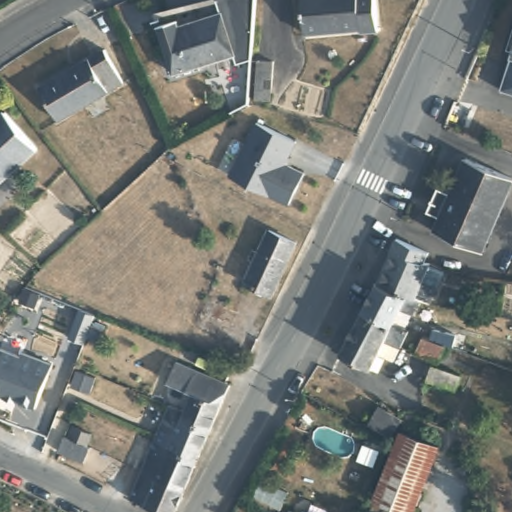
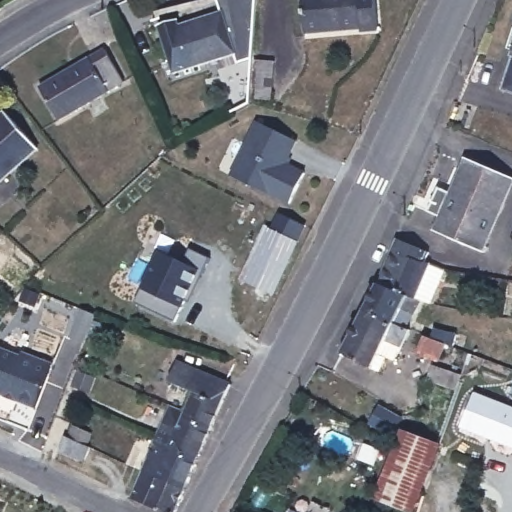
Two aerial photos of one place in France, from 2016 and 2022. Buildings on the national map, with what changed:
unchanged [(255,0),(252,59),(236,64),(233,54),(221,14),(217,0),(255,0)]
unchanged [(357,28),(356,25),(302,30),(299,0),(373,0),(374,27),(357,28)]
unchanged [(233,54),(173,74),(157,25),(175,20),(179,27),(221,14),(233,54)]
unchanged [(60,120),(40,89),(104,50),(122,81),(60,120)]
unchanged [(271,101),(255,100),(257,60),(273,61),(271,101)]
unchanged [(512,65),(512,94),(503,91),(512,65)]
unchanged [(36,150),(0,182),(0,117),(4,114),(36,150)]
unchanged [(288,161),(308,170),(294,200),(274,191),(273,192),(235,174),(259,120),(299,137),(288,161)]
unchanged [(435,190),(440,187),(447,191),(463,155),(512,176),(512,181),(481,249),(432,227),(438,213),(432,210),(427,207),(430,199),(435,190)]
unchanged [(273,297),(245,283),(270,232),(297,244),(273,297)]
unchanged [(400,236),(430,250),(427,258),(445,266),(430,298),(420,297),(408,295),(377,278),(396,244),(400,236)]
new [(164,246),(187,258),(195,245),(215,255),(207,271),(202,268),(177,317),(137,297),(164,246)]
unchanged [(377,278),(408,295),(420,297),(405,326),(364,305),(377,278)]
demolished [(206,315),(211,303),(239,315),(233,327),(210,317),(206,315)]
unchanged [(371,363),(341,347),(364,305),(405,326),(411,328),(403,343),(400,342),(395,355),(385,351),(378,367),(371,363)]
unchanged [(96,316),(85,343),(70,337),(81,310),(96,316)]
unchanged [(441,367),(416,357),(423,341),(448,350),(441,367)]
unchanged [(0,390),(0,348),(0,347),(21,356),(22,353),(23,352),(53,363),(53,364),(37,405),(18,397),(7,392),(0,390)]
unchanged [(162,420),(170,402),(186,408),(191,397),(165,385),(179,356),(231,380),(211,427),(200,455),(155,436),(162,420)]
unchanged [(457,397),(426,384),(433,367),(463,380),(457,397)]
unchanged [(395,437),(372,424),(381,410),(403,422),(395,437)]
unchanged [(74,430),(79,417),(97,423),(92,437),(95,438),(88,452),(64,442),(69,427),(74,430)]
unchanged [(403,431),(440,446),(422,487),(385,472),(403,431)]
unchanged [(155,436),(200,455),(186,485),(142,466),(155,436)]
unchanged [(142,466),(186,485),(175,512),(131,491),(142,466)]
unchanged [(422,487),(411,512),(373,498),(385,472),(422,487)]
unchanged [(296,507),(310,512),(294,512),(296,507)]

